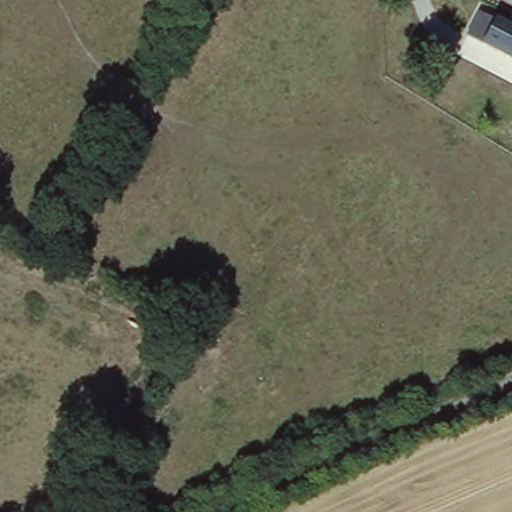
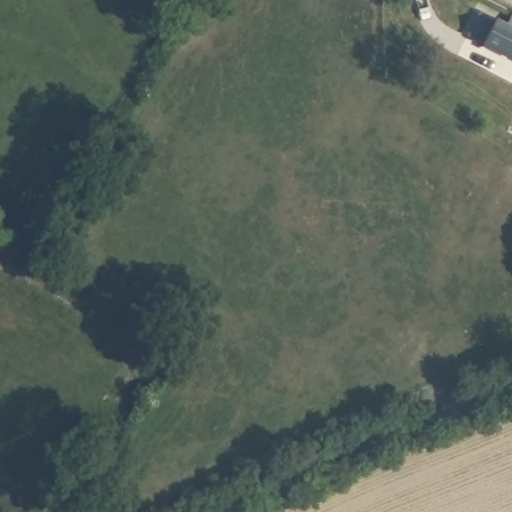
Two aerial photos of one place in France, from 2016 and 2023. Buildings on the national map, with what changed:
unchanged [(512,20),(512,69),(461,45),(475,16),(503,31),(510,19),(512,20)]

